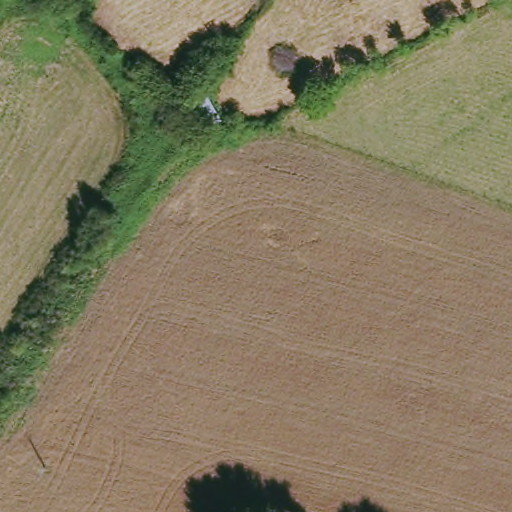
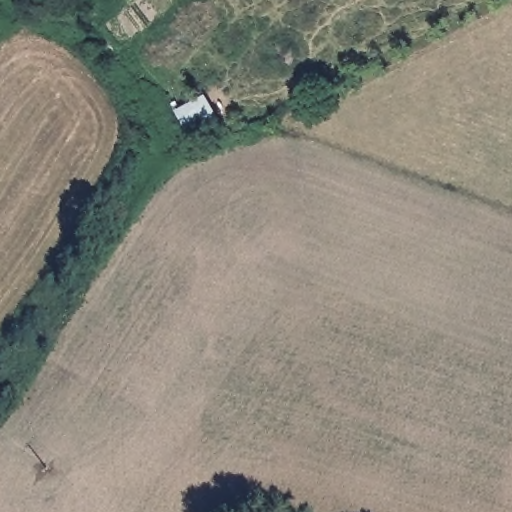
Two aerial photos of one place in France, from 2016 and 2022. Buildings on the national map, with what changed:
unchanged [(212,91),(228,120),(197,140),(180,110),(212,91)]

